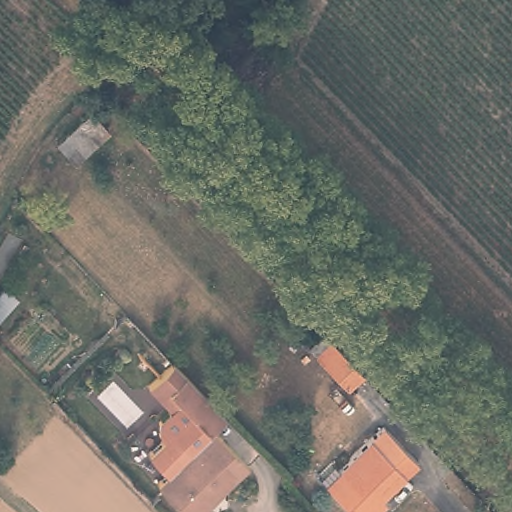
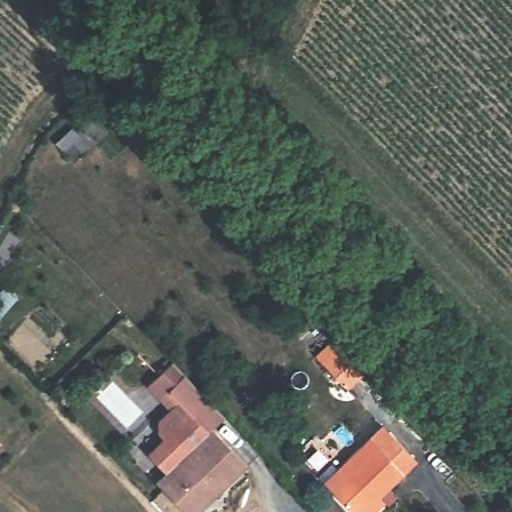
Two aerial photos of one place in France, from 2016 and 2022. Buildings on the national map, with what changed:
unchanged [(322,360),(308,345),(324,330),(337,343),(363,372),(347,387),(322,360)]
unchanged [(216,433),(251,471),(218,502),(211,493),(191,512),(184,512),(158,483),(168,475),(150,456),(166,441),(161,435),(161,422),(173,412),(151,388),(177,363),(230,422),(216,433)]
unchanged [(381,422),(417,460),(379,494),(342,460),(381,422)]
unchanged [(342,470),(337,465),(342,460),(379,494),(385,498),(370,512),(354,512),(327,483),(342,470)]

